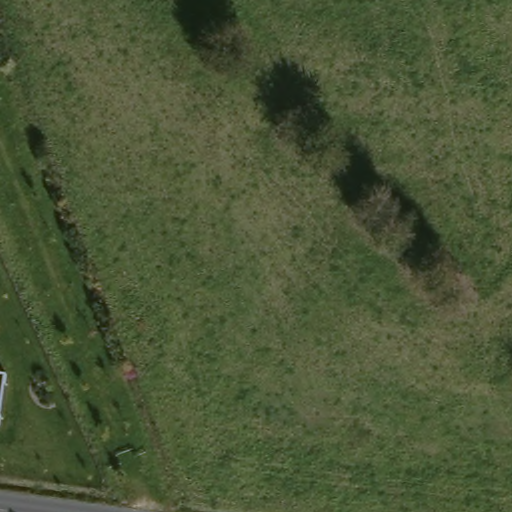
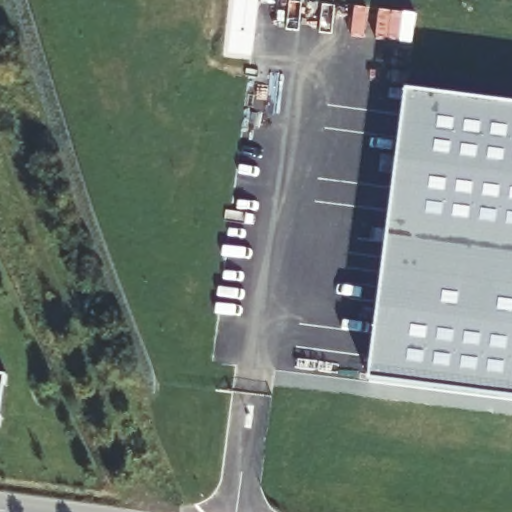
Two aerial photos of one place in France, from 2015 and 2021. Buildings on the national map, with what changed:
new [(512,105),(512,401),(370,382),(407,91),(512,105)]
unchanged [(6,378),(1,429),(0,429),(0,378),(6,378)]

